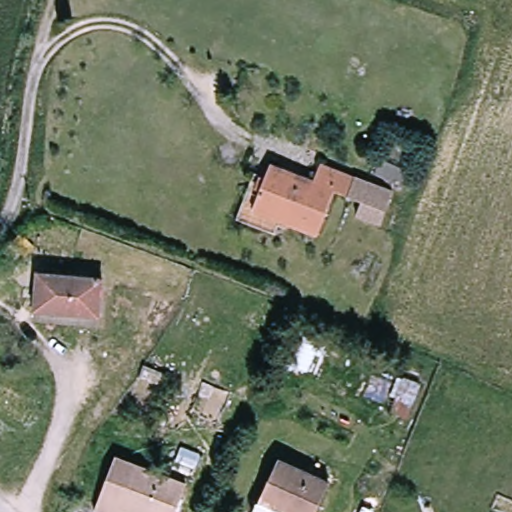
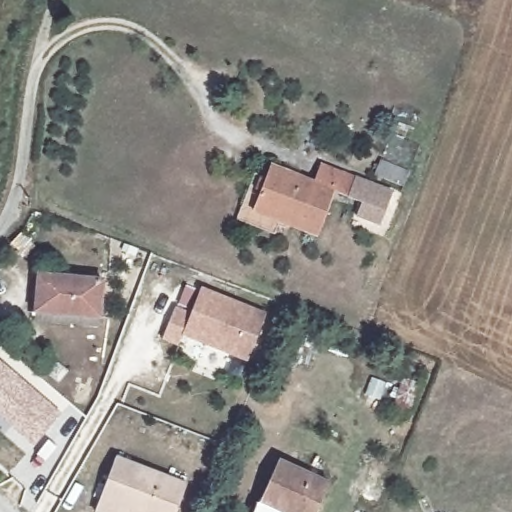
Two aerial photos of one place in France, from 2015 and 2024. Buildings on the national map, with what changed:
unchanged [(361,209),(365,195),(338,186),(314,177),(269,162),(271,157),(312,172),(318,157),(396,186),(389,203),(384,218),(361,209)]
unchanged [(269,162),(314,177),(338,186),(321,232),(253,206),(269,162)]
new [(253,206),(321,232),(318,237),(279,223),(276,234),(238,221),(249,192),(257,195),(253,206)]
unchanged [(104,312),(39,307),(42,271),(106,276),(104,312)]
new [(266,313),(246,363),(181,335),(176,345),(162,340),(175,308),(191,313),(201,287),(266,313)]
new [(40,447),(16,427),(0,413),(0,363),(65,419),(40,447)]
unchanged [(122,459),(188,485),(177,512),(112,512),(102,508),(122,459)]
unchanged [(329,481),(317,512),(286,512),(261,502),(278,460),(329,481)]

